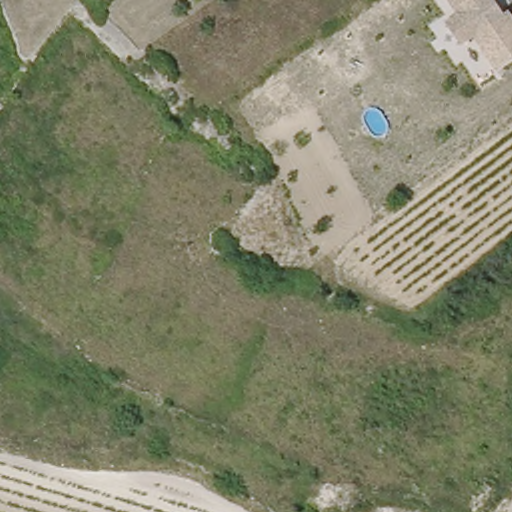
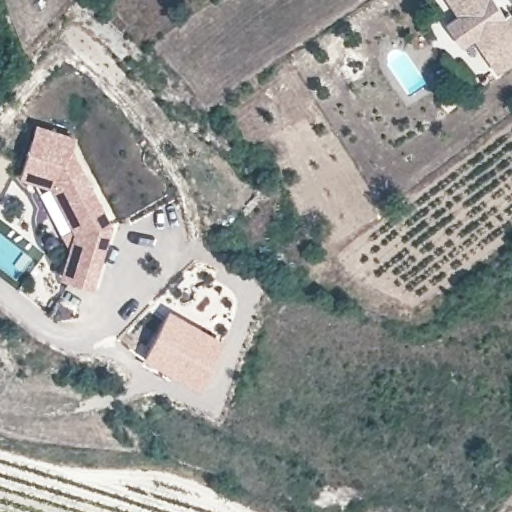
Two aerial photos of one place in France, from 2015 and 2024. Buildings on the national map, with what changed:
unchanged [(512,60),(500,69),(477,35),(465,43),(449,19),(460,11),(453,0),(505,0),(512,10),(512,60)]
new [(77,136),(73,150),(112,223),(92,286),(60,276),(74,231),(50,187),(18,176),(36,124),(77,136)]
new [(168,307),(223,340),(198,387),(142,356),(168,307)]

